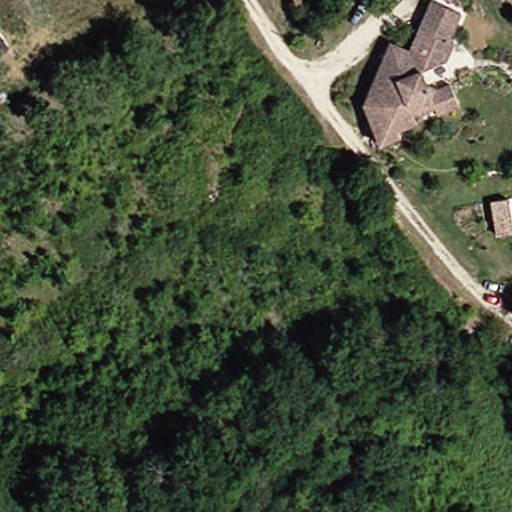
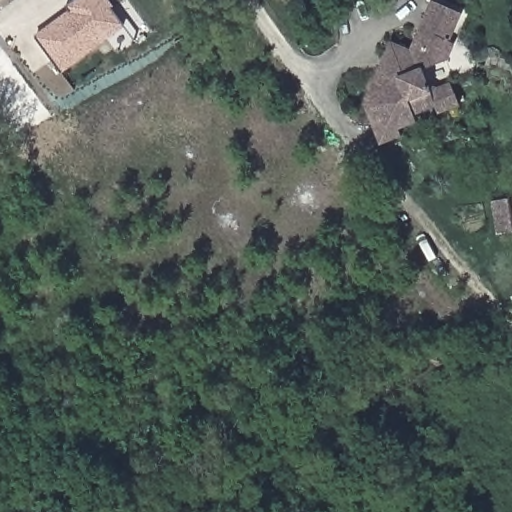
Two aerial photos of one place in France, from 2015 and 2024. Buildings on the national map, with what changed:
new [(62,23),(72,15),(66,6),(71,0),(106,0),(125,24),(62,72),(36,38),(60,19),(62,23)]
unchanged [(386,41),(405,46),(428,2),(456,12),(440,67),(427,66),(421,76),(427,93),(447,86),(456,109),(434,115),(432,106),(420,111),(422,118),(411,119),(412,126),(392,132),(393,138),(375,146),(356,104),(386,41)]
unchanged [(512,198),(512,232),(498,234),(492,202),(512,198)]

